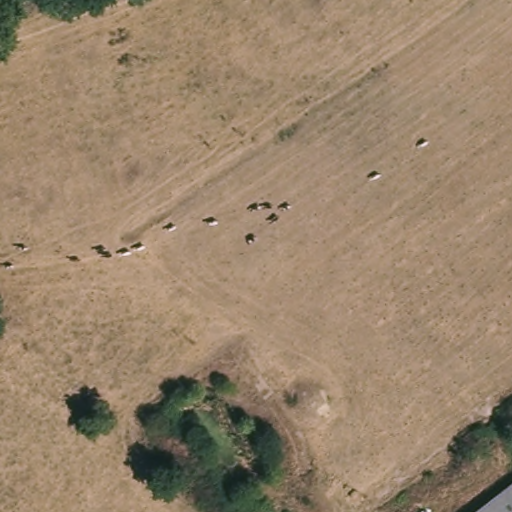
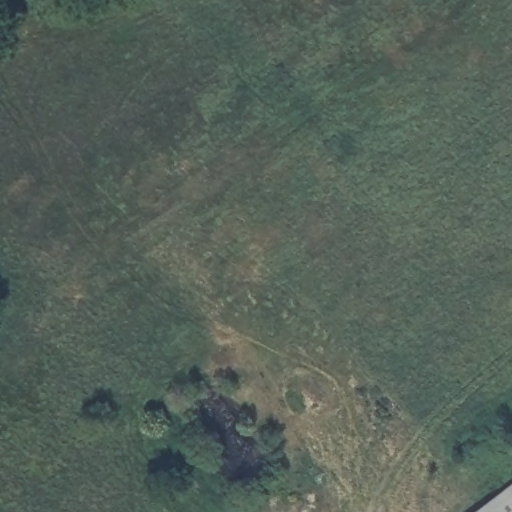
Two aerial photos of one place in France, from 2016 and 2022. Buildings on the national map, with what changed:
unchanged [(512,491),(512,512),(483,512),(512,491)]

